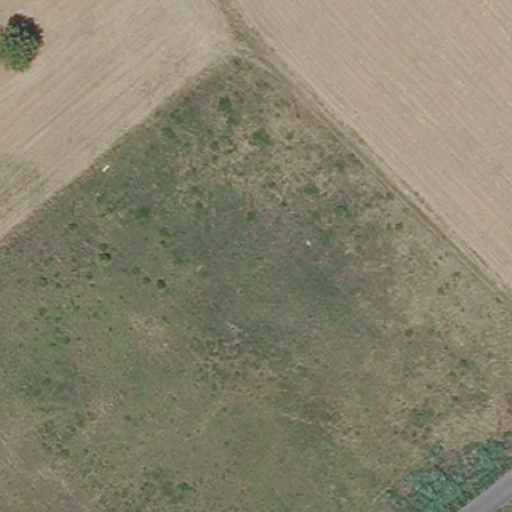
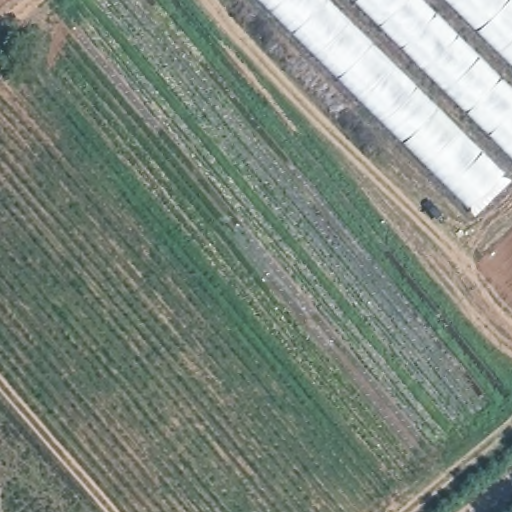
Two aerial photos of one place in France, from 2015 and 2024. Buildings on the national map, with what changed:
new [(471,208),(260,0),(512,0),(512,168),(471,208)]

